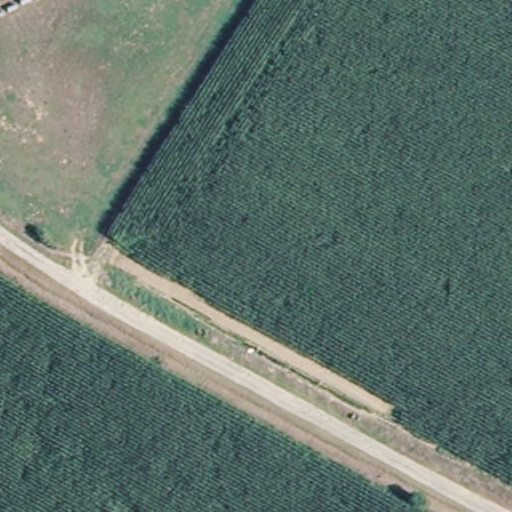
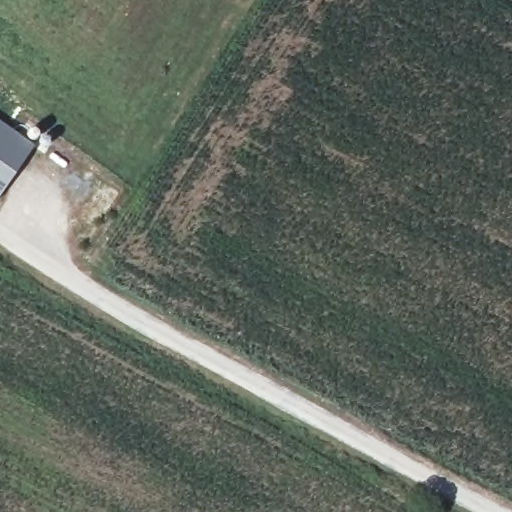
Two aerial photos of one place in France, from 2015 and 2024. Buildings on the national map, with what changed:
new [(0,193),(0,121),(34,145),(0,193)]

